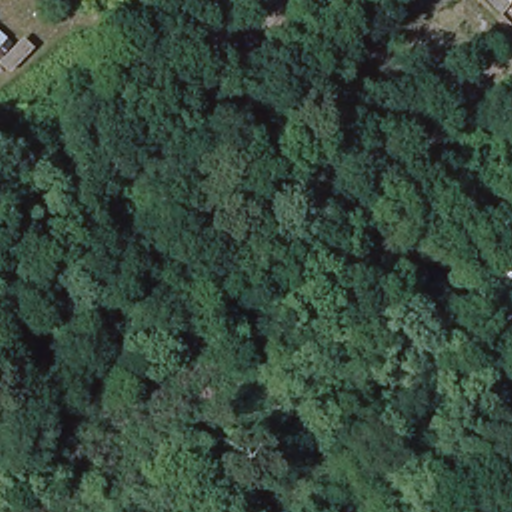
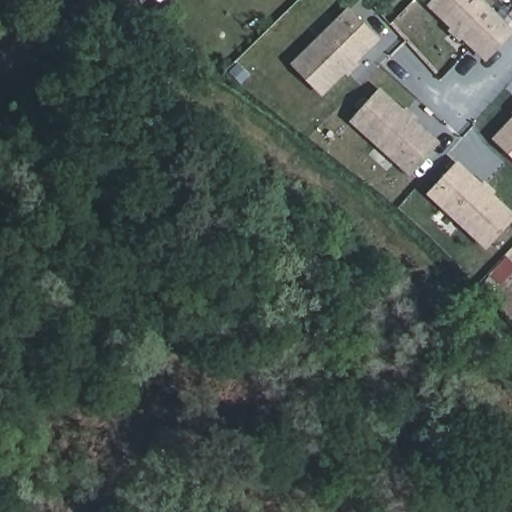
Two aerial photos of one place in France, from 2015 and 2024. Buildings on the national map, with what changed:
new [(512,30),(512,34),(486,60),(432,6),(439,0),(482,0),(512,30)]
new [(351,12),(378,42),(323,93),(296,64),(351,12)]
unchanged [(0,54),(0,41),(6,47),(0,54)]
unchanged [(6,74),(0,69),(0,62),(14,47),(24,56),(6,74)]
new [(383,93),(438,145),(411,174),(356,121),(383,93)]
new [(512,150),(499,138),(512,125),(512,150)]
new [(512,212),(512,222),(490,246),(434,195),(461,165),(512,212)]

